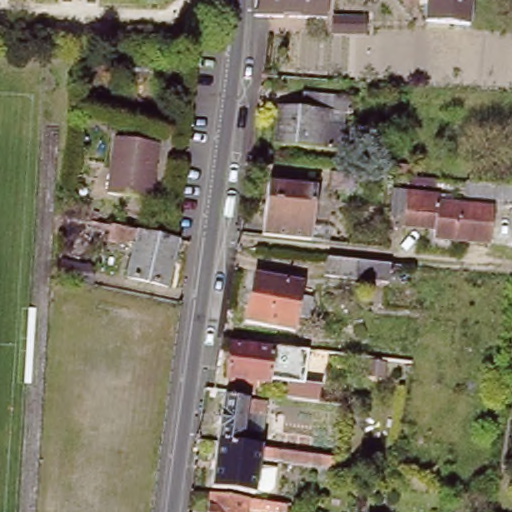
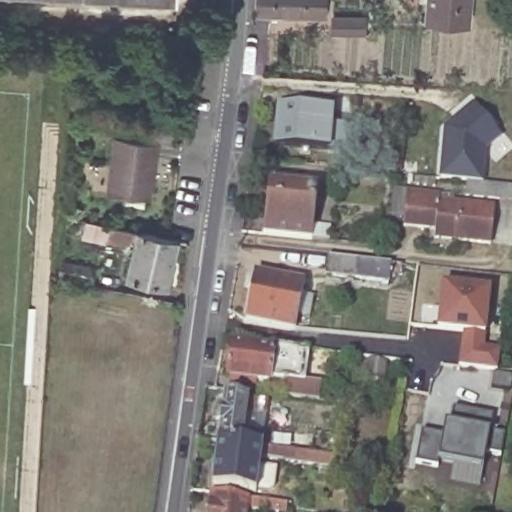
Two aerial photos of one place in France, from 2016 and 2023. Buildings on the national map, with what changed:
unchanged [(269,20),(255,19),(256,0),(329,0),(327,24),(269,20)]
unchanged [(424,18),(426,0),(468,0),(466,23),(424,18)]
new [(334,13),(368,15),(367,32),(332,29),(334,13)]
demolished [(329,23),(362,25),(361,42),(327,39),(329,23)]
unchanged [(274,106),(302,110),(304,94),(345,100),(343,117),(326,114),(325,126),(338,128),(335,154),(269,146),(274,106)]
new [(437,178),(442,126),(472,103),(500,136),(485,148),(482,178),(467,176),(467,180),(437,178)]
unchanged [(150,203),(111,197),(118,140),(159,145),(150,203)]
unchanged [(466,189),(467,176),(512,180),(512,194),(466,189)]
unchanged [(267,182),(317,187),(311,239),(262,234),(267,182)]
unchanged [(407,185),(438,189),(437,195),(492,201),(489,237),(435,231),(435,224),(404,220),(407,185)]
unchanged [(169,290),(125,280),(134,247),(127,245),(122,249),(107,245),(109,229),(179,243),(169,290)]
unchanged [(390,264),(387,280),(360,279),(325,276),(327,257),(390,264)]
unchanged [(57,274),(60,261),(94,268),(91,279),(57,274)]
unchanged [(305,318),(296,317),(293,333),(243,321),(253,273),(302,284),(300,297),(309,299),(305,318)]
new [(457,365),(460,333),(437,329),(441,284),(489,290),(484,334),(484,347),(499,348),(496,369),(457,365)]
unchanged [(231,344),(273,349),(274,346),(310,349),(305,384),(270,379),(269,383),(266,383),(265,396),(237,392),(239,379),(226,378),(231,344)]
unchanged [(217,442),(224,397),(267,403),(265,417),(261,416),(258,433),(264,434),(261,448),(217,442)]
demolished [(339,426),(312,422),(315,402),(342,406),(339,426)]
new [(484,453),(481,468),(436,459),(437,466),(415,463),(421,431),(443,435),(445,423),(450,424),(452,408),(491,416),(487,432),(505,434),(500,454),(484,453)]
unchanged [(334,459),(329,481),(329,483),(319,481),(321,470),(260,461),(255,494),(212,488),(217,442),(261,448),(334,459)]
unchanged [(288,503),(287,512),(276,512),(247,508),(247,512),(208,512),(211,493),(288,503)]

